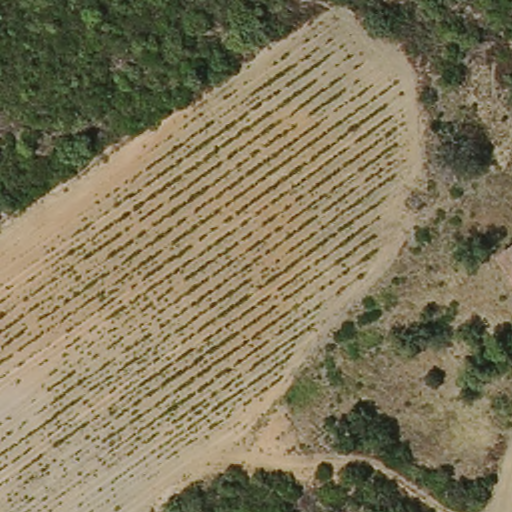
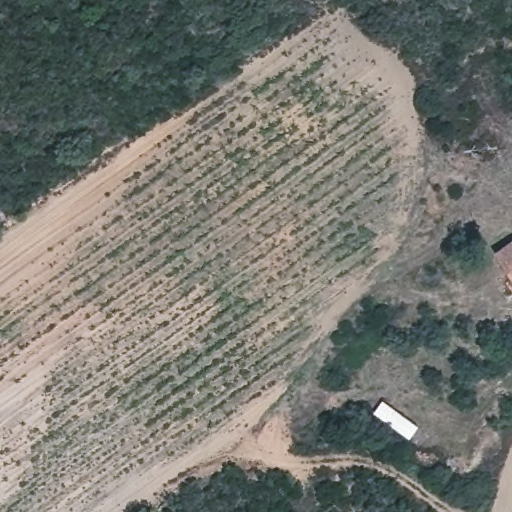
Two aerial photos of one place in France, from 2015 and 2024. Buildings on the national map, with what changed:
unchanged [(512,246),(512,275),(499,255),(512,246)]

